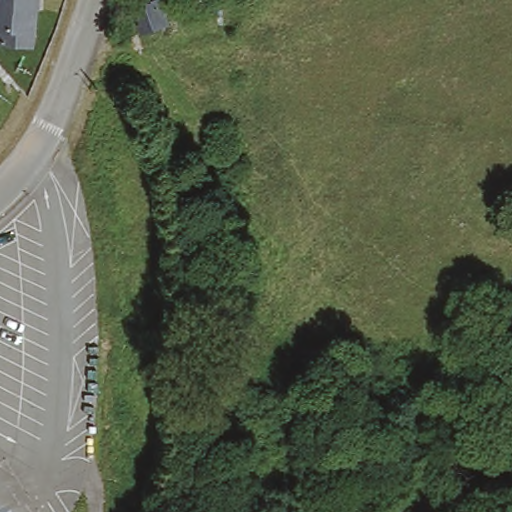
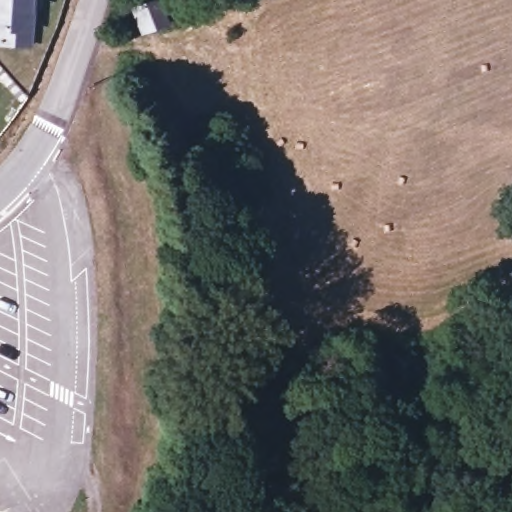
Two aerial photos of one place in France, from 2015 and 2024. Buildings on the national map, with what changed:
unchanged [(0,50),(0,0),(30,0),(29,51),(0,50)]
unchanged [(140,31),(133,4),(145,0),(159,0),(165,21),(140,31)]

